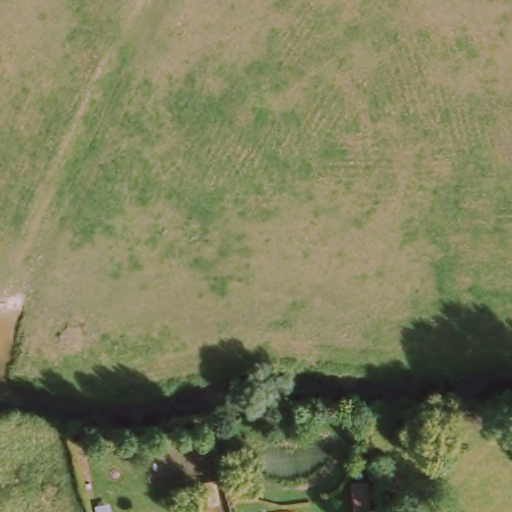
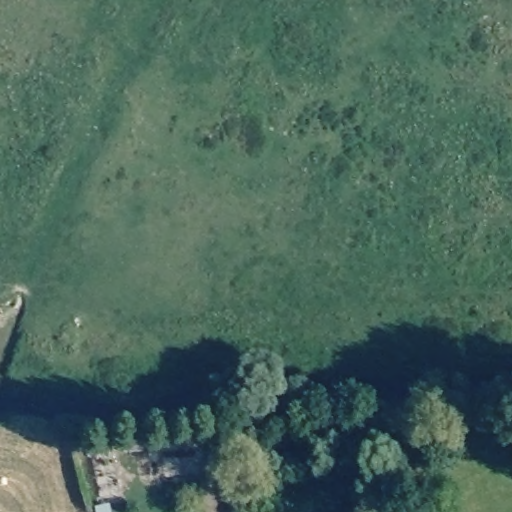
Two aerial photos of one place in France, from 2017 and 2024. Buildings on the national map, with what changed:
unchanged [(371,493),(372,512),(357,512),(356,494),(371,493)]

